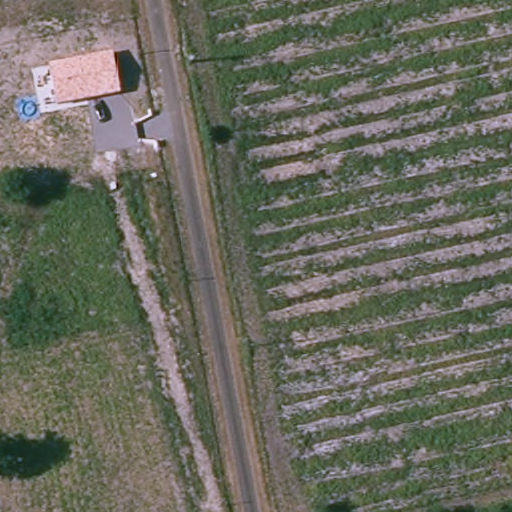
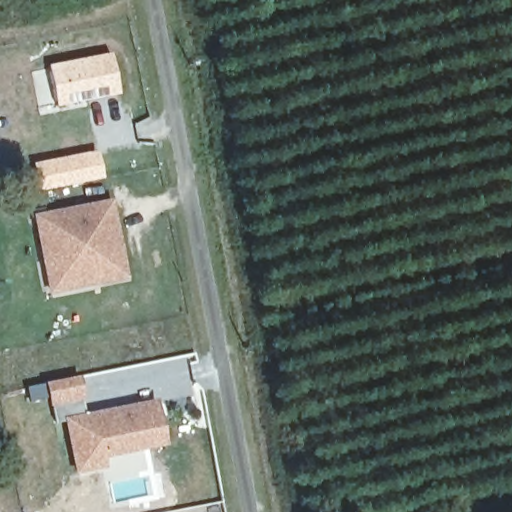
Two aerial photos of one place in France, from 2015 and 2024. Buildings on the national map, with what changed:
unchanged [(121,94),(59,105),(49,64),(112,52),(121,94)]
new [(40,192),(34,164),(98,151),(103,179),(40,192)]
new [(32,215),(113,198),(129,278),(48,295),(32,215)]
new [(54,425),(46,382),(80,374),(89,413),(158,398),(169,446),(106,459),(109,470),(75,476),(65,422),(54,425)]

